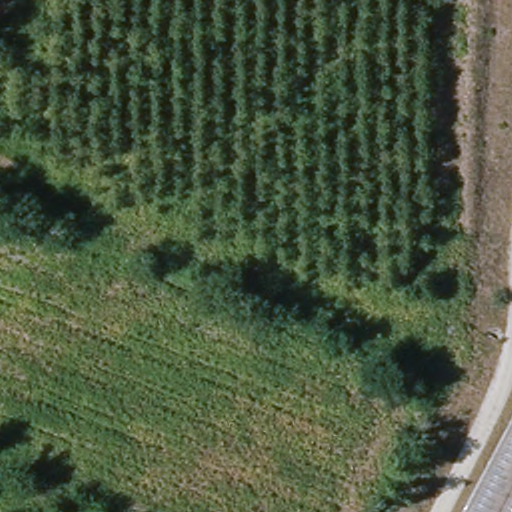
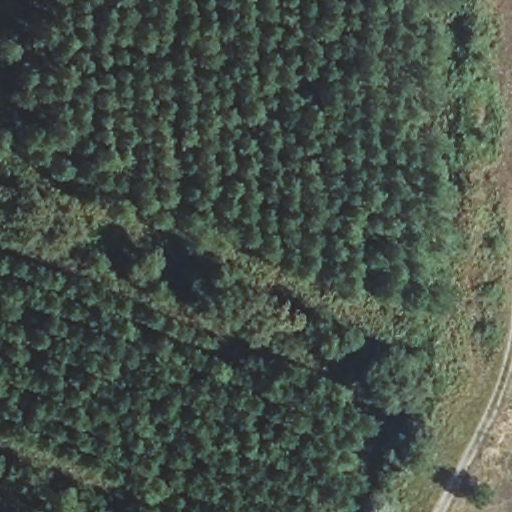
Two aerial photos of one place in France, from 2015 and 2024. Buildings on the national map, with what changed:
demolished [(512,512),(456,512),(512,401),(512,512)]

